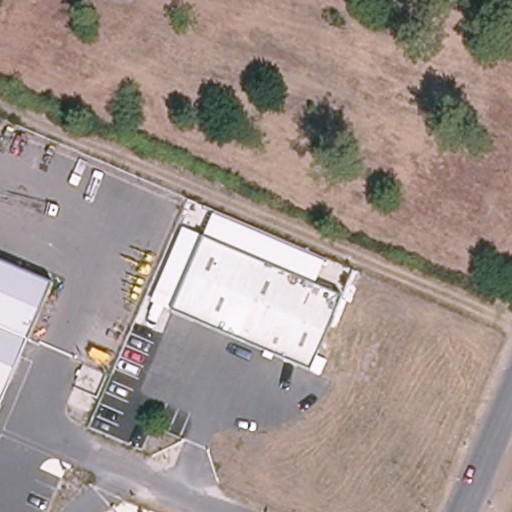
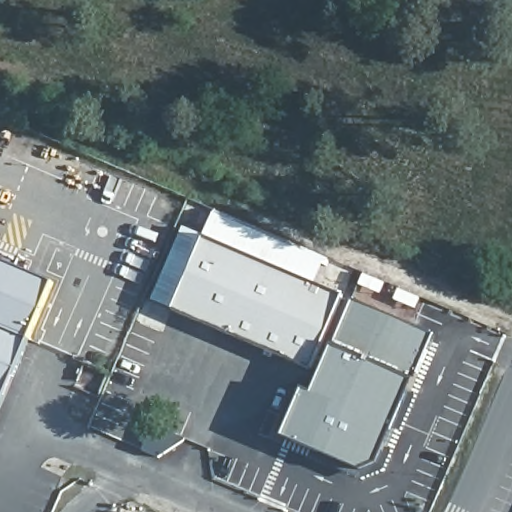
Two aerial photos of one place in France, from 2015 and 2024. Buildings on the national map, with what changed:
unchanged [(166,305),(149,297),(181,223),(199,231),(166,305)]
unchanged [(306,365),(166,305),(199,231),(338,291),(306,365)]
unchanged [(0,259),(54,281),(31,337),(0,414),(0,259)]
new [(377,461),(358,472),(284,438),(305,389),(314,393),(354,300),(432,332),(377,461)]

